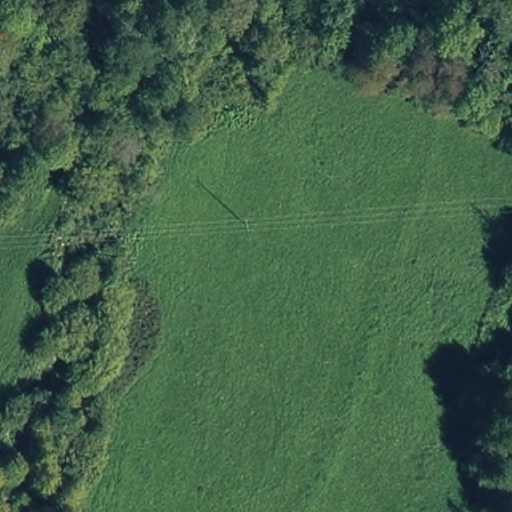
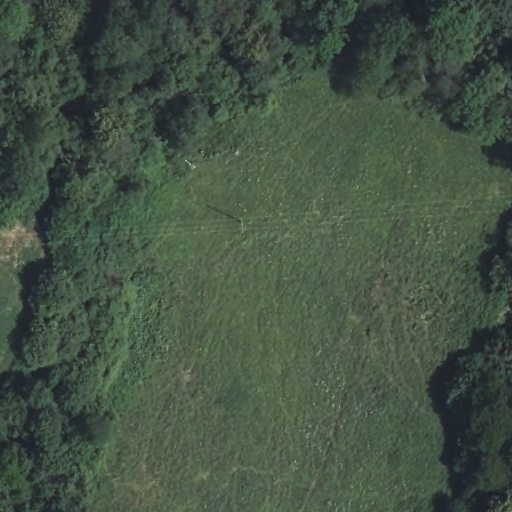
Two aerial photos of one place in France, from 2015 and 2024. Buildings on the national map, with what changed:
[]

